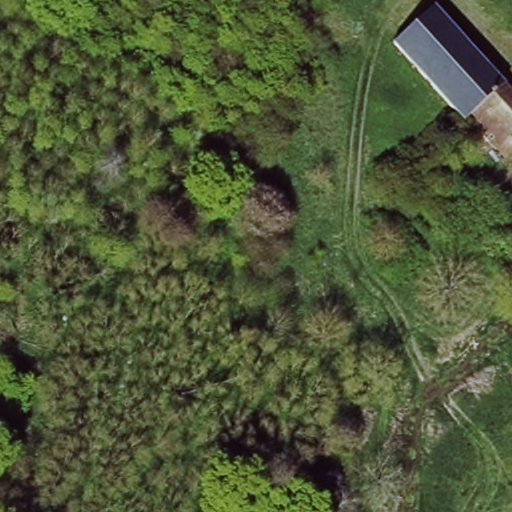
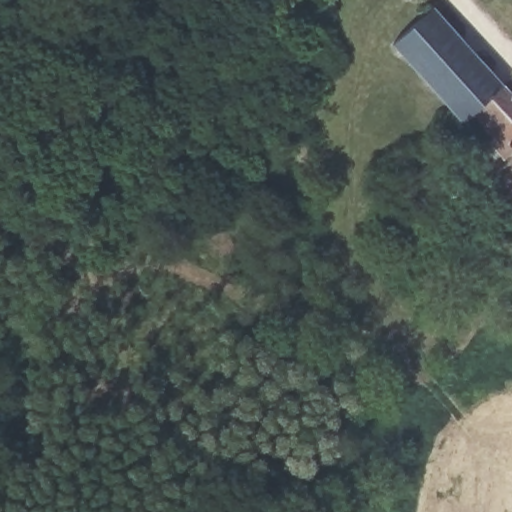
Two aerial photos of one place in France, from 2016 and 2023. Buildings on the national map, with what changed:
unchanged [(512,87),(512,157),(510,158),(475,119),(472,124),(398,44),(439,6),(512,87)]

